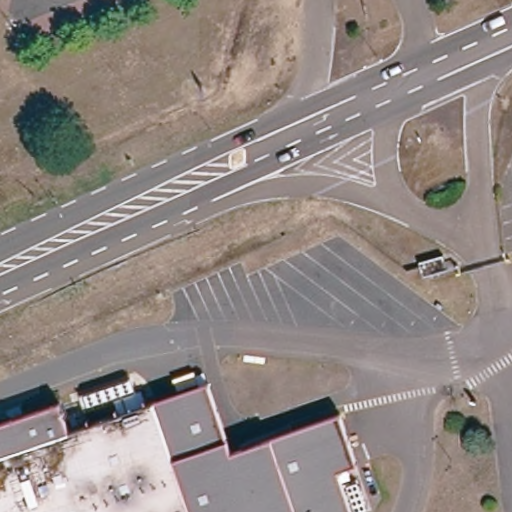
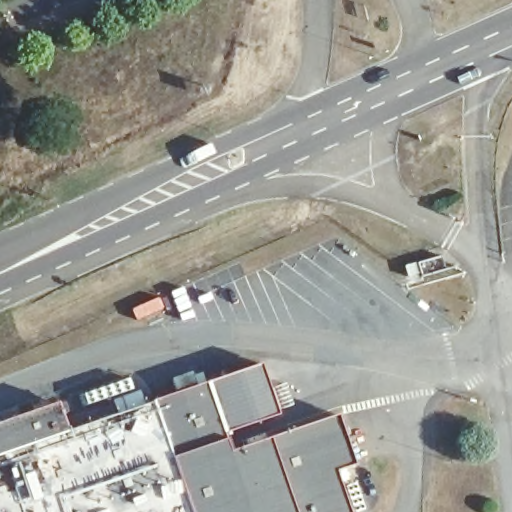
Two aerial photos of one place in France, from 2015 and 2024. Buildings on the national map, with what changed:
unchanged [(443,256),(447,270),(422,277),(418,263),(443,256)]
new [(207,381),(262,363),(280,414),(225,432),(210,388),(209,388),(207,381)]
unchanged [(200,387),(179,394),(176,383),(196,376),(200,387)]
new [(141,388),(145,404),(117,415),(111,397),(141,388)]
unchanged [(210,388),(234,457),(342,420),(359,468),(338,475),(351,512),(190,512),(154,407),(210,388)]
unchanged [(61,408),(70,436),(154,407),(190,512),(0,512),(0,429),(61,408)]

